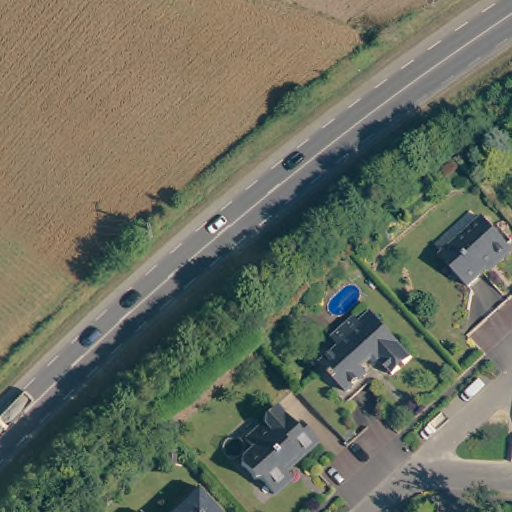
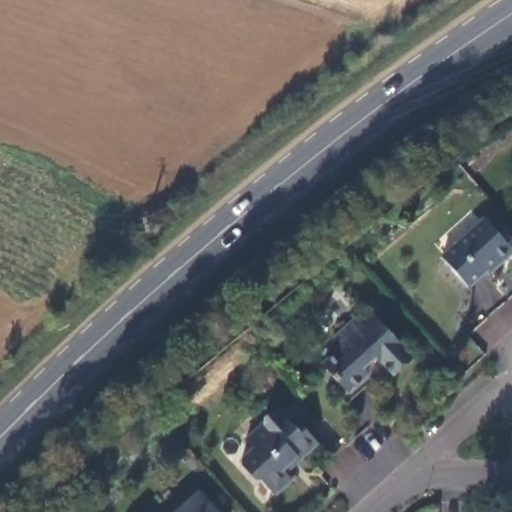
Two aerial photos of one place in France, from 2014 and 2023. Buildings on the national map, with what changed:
unchanged [(512,249),(512,257),(501,267),(498,263),(492,268),(492,272),(471,290),(445,260),(487,222),(512,249)]
unchanged [(396,379),(379,360),(366,372),(371,377),(350,396),(325,368),(343,351),(335,341),(359,320),(362,324),(365,326),(375,316),(416,361),(396,379)]
unchanged [(302,456),(300,457),(285,470),(295,481),(277,497),(263,482),(257,482),(245,468),(245,459),(255,449),(248,441),(265,425),(266,418),(280,407),(297,428),(303,425),(318,441),(302,456)]
unchanged [(197,490),(218,512),(172,512),(197,490)]

